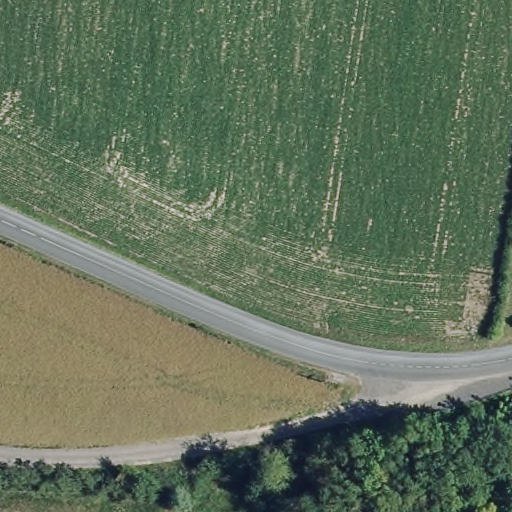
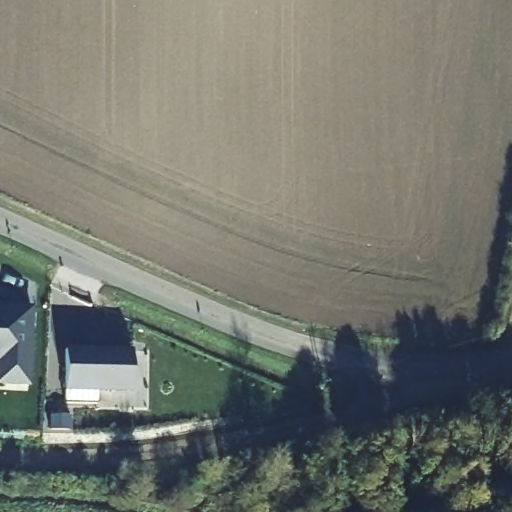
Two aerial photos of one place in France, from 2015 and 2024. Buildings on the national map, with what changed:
new [(15,306),(35,307),(34,382),(1,382),(1,357),(0,357),(0,312),(15,312),(15,306)]
new [(65,348),(132,349),(133,392),(97,392),(97,403),(64,403),(64,391),(65,348)]

